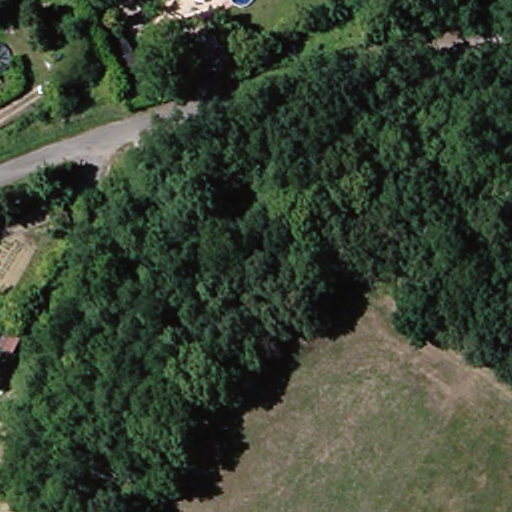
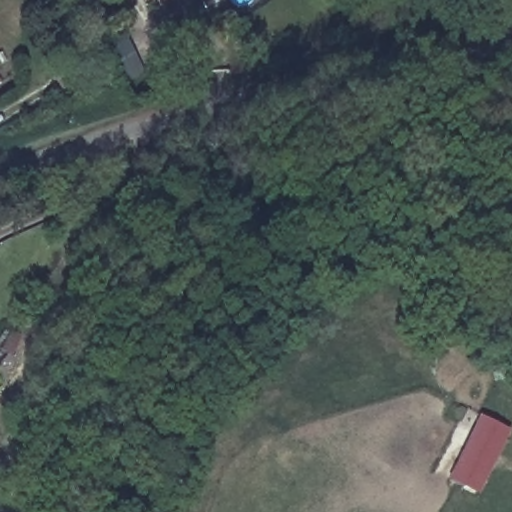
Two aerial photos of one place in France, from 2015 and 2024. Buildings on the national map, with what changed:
unchanged [(164,5),(161,0),(172,0),(164,5)]
new [(480,495),(447,480),(478,416),(511,432),(480,495)]

